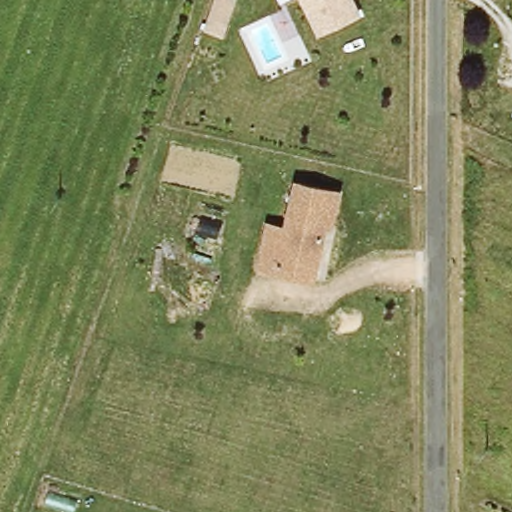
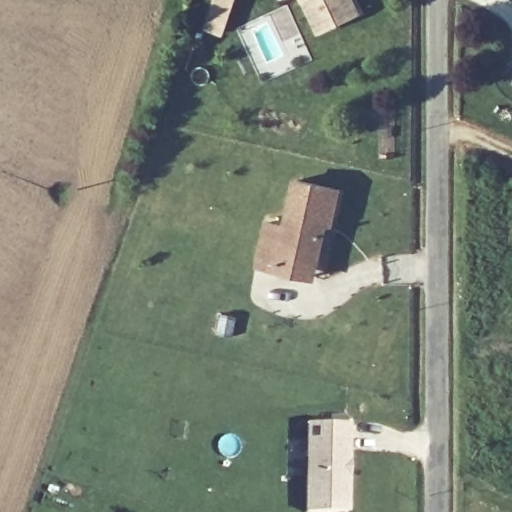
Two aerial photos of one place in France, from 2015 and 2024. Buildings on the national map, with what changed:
unchanged [(306,0),(354,0),(360,13),(322,32),(306,0)]
unchanged [(279,272),(260,268),(268,225),(288,229),(296,183),(340,190),(334,225),(326,225),(319,265),(316,279),(279,272)]
new [(348,512),(304,512),(305,424),(350,425),(348,512)]

